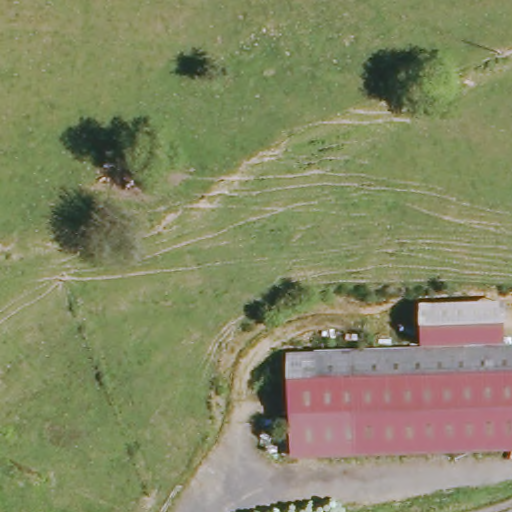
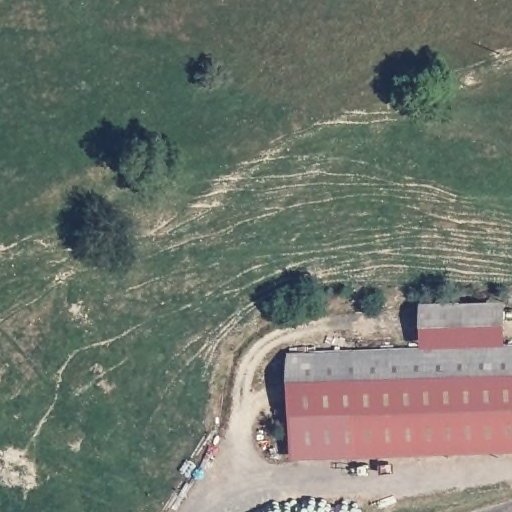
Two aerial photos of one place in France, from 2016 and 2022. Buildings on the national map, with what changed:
unchanged [(288,456),(285,357),(512,346),(512,447),(288,456)]

